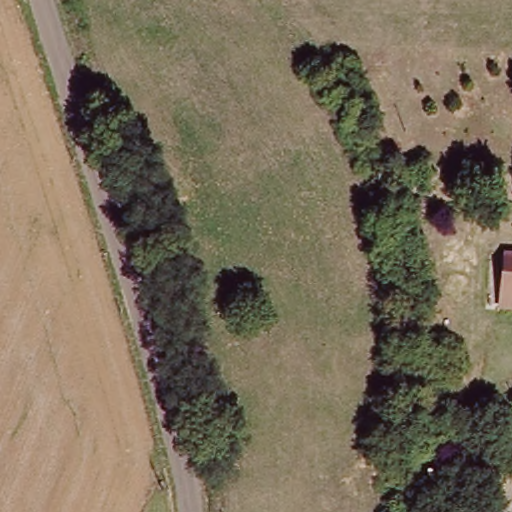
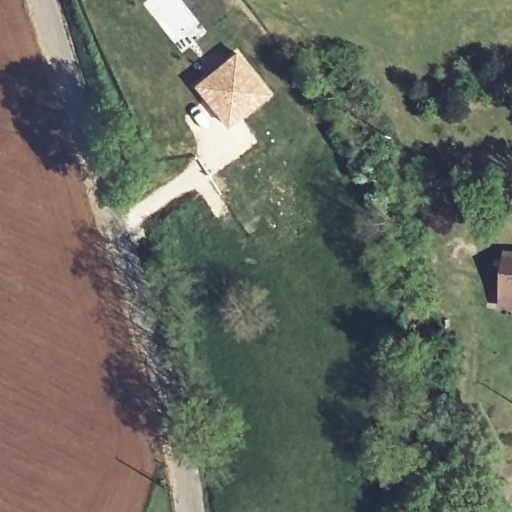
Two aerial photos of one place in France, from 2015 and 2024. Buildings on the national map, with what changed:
new [(237,49),(273,94),(226,128),(192,84),(237,49)]
unchanged [(502,290),(505,249),(512,250),(512,305),(500,304),(502,290)]

